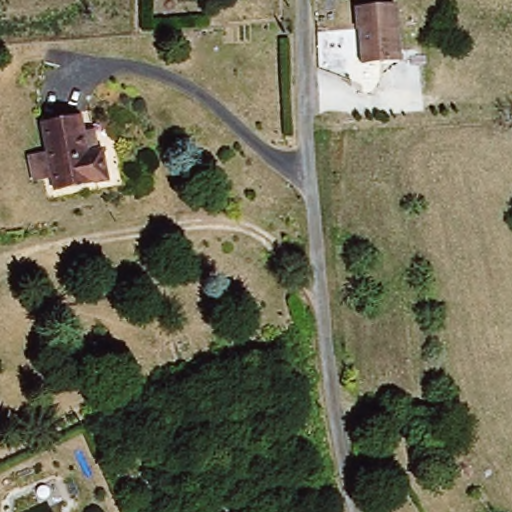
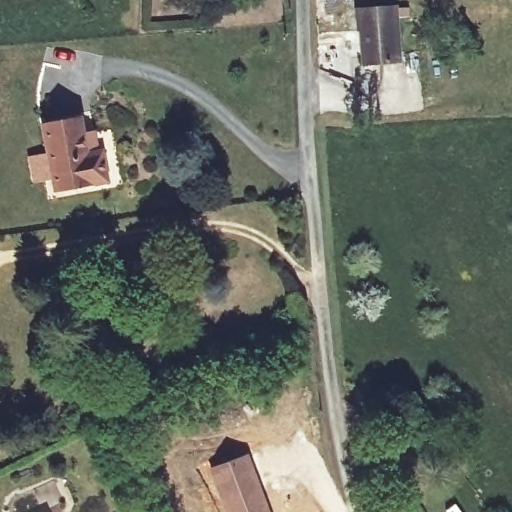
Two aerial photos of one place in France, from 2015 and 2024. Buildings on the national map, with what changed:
unchanged [(361,30),(358,30),(357,8),(395,5),(398,63),(364,65),(361,30)]
unchanged [(108,177),(54,187),(40,118),(80,110),(83,128),(93,125),(97,145),(101,144),(108,177)]
new [(208,468),(248,453),(270,512),(224,512),(208,468)]

